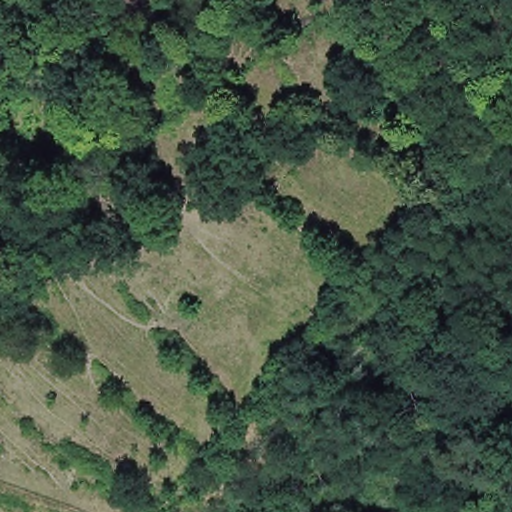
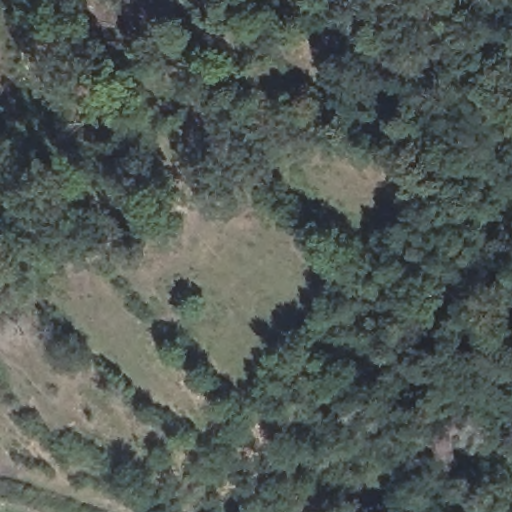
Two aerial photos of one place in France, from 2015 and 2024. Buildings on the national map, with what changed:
unchanged [(100,16),(95,17),(90,0),(108,0),(112,13),(100,16)]

